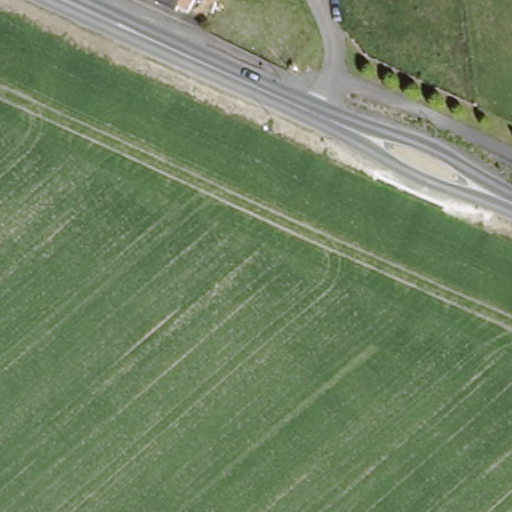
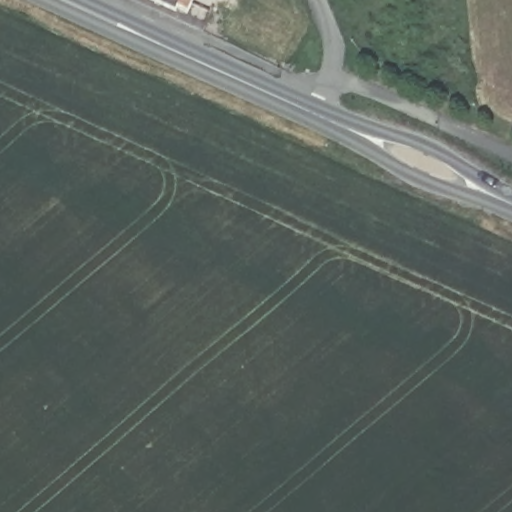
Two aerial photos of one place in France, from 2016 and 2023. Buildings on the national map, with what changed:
unchanged [(187,9),(176,4),(174,7),(158,0),(190,0),(187,9)]

